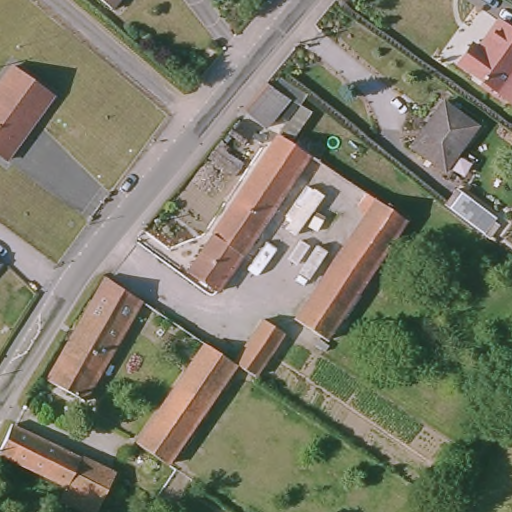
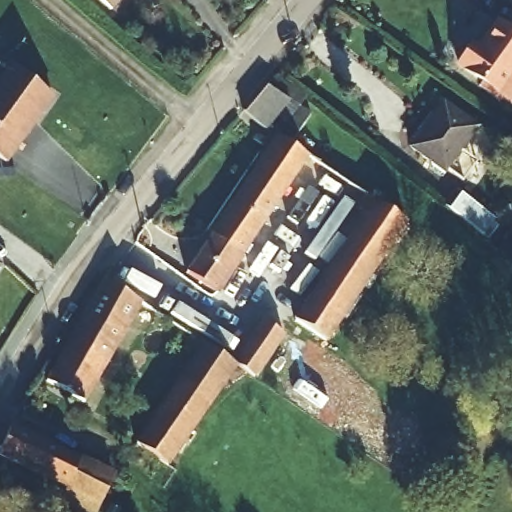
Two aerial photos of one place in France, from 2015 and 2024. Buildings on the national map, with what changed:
unchanged [(109,11),(97,0),(118,0),(109,11)]
unchanged [(512,77),(512,100),(505,109),(454,66),(469,48),(475,52),(495,28),(512,42),(512,76),(512,77)]
unchanged [(8,68),(48,97),(0,159),(0,78),(8,68)]
unchanged [(272,143),(275,137),(296,107),(286,99),(263,129),(242,113),(265,85),(270,89),(276,81),(302,99),(297,106),(308,114),(287,144),(290,147),(297,137),(310,148),(304,157),(341,181),(409,226),(356,306),(328,345),(297,324),(366,220),(301,174),(244,259),(210,235),(272,143)]
unchanged [(474,131),(442,172),(410,145),(442,105),(474,131)]
unchanged [(459,188),(499,227),(484,241),(480,237),(445,202),(459,188)]
unchanged [(244,259),(228,280),(218,293),(186,272),(210,235),(244,259)]
unchanged [(1,266),(0,267),(0,266),(1,266)]
unchanged [(234,368),(163,467),(132,445),(190,365),(130,325),(80,398),(43,375),(105,280),(234,368)]
unchanged [(252,375),(229,360),(234,351),(241,353),(264,322),(281,335),(252,375)]
unchanged [(62,489),(0,463),(0,453),(13,427),(115,475),(101,506),(97,512),(83,512),(62,503),(57,501),(62,489)]

